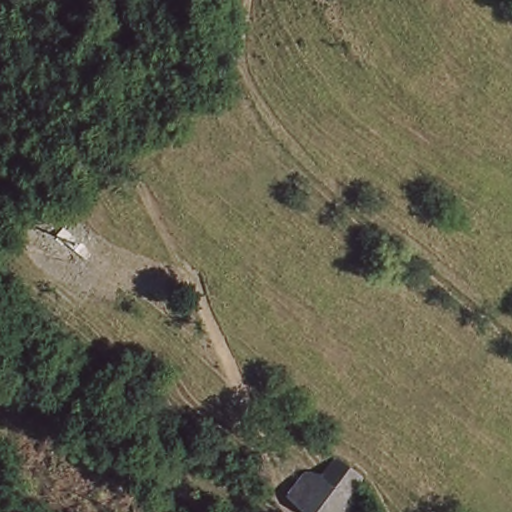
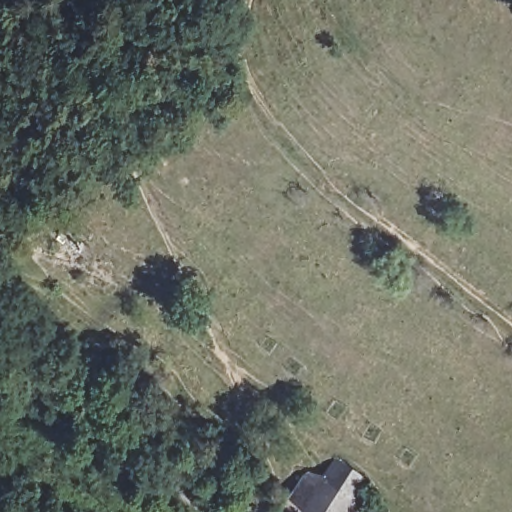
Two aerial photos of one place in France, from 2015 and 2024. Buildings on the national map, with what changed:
unchanged [(346,512),(292,512),(283,505),(317,459),(359,492),(346,512)]

